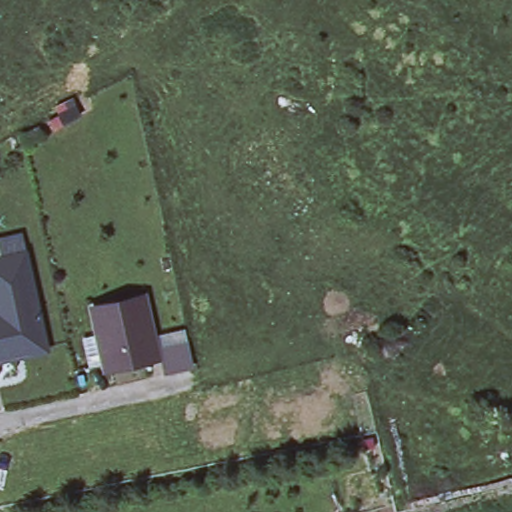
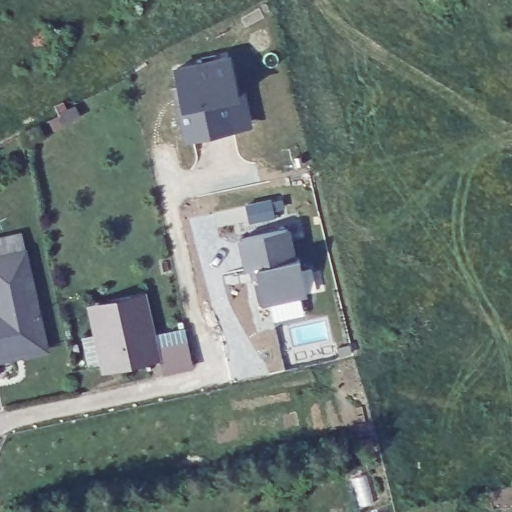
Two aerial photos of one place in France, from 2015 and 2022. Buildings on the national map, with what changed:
new [(187,138),(181,105),(176,107),(172,88),(181,86),(177,69),(228,58),(236,94),(243,92),(249,123),(233,127),(187,138)]
new [(253,280),(250,268),(244,271),(237,238),(290,227),(296,258),(300,257),(307,296),(264,305),(258,301),(253,280)]
unchanged [(23,231),(48,353),(0,363),(0,236),(23,231)]
unchanged [(88,341),(103,338),(98,313),(148,302),(160,361),(111,372),(110,368),(95,371),(88,341)]
unchanged [(168,372),(161,340),(188,334),(195,366),(168,372)]

